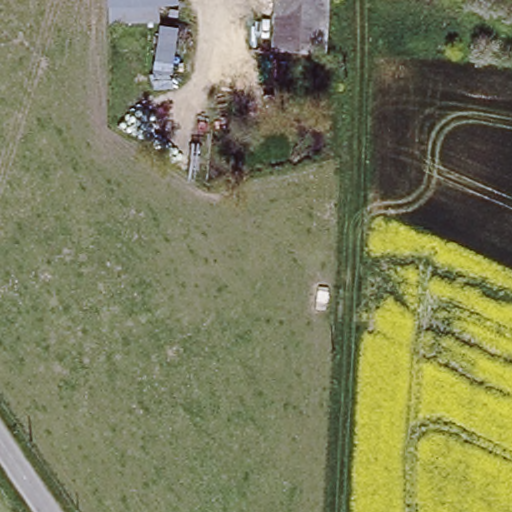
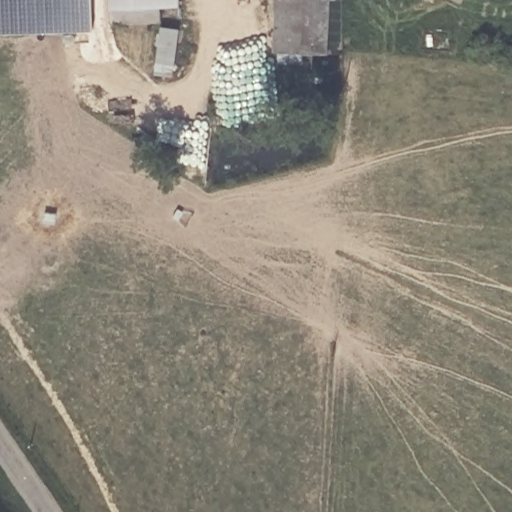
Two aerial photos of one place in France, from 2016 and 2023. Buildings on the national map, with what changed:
new [(87,0),(88,30),(0,32),(0,0),(87,0)]
demolished [(155,0),(155,20),(109,19),(109,0),(155,0)]
unchanged [(299,0),(298,54),(274,53),(275,0),(299,0)]
unchanged [(326,0),(325,54),(298,54),(299,0),(326,0)]

